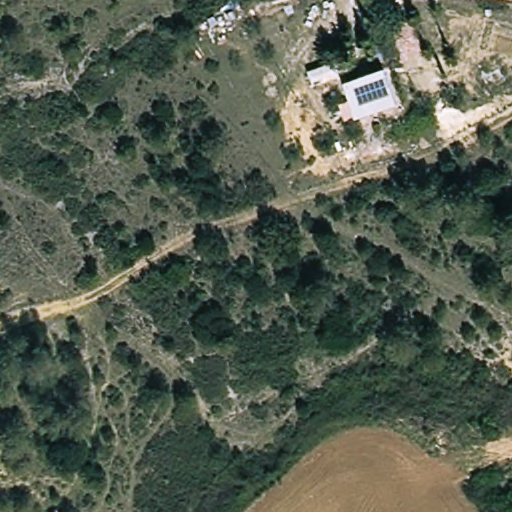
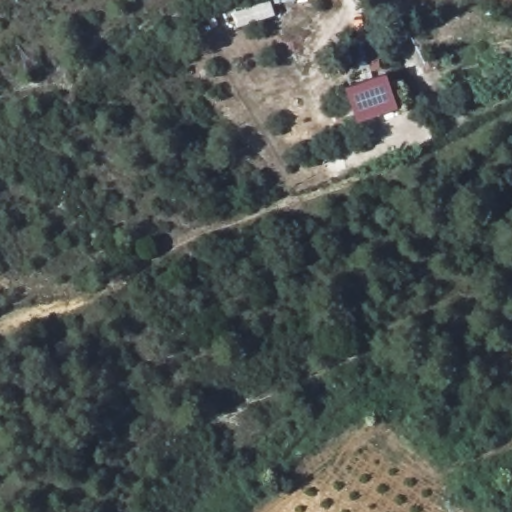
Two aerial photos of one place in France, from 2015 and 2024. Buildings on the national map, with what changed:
unchanged [(343,87),(388,70),(398,98),(383,102),(387,111),(357,123),(343,87)]

